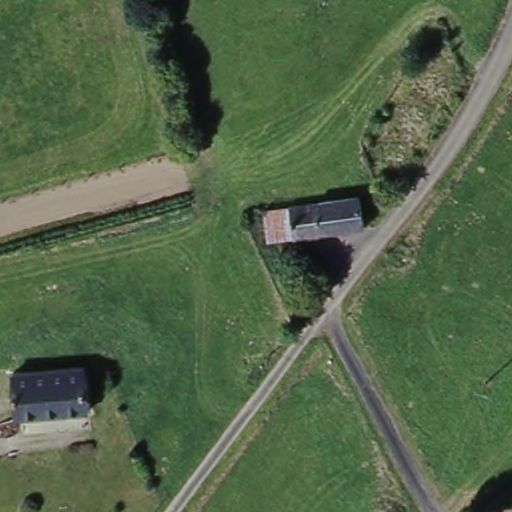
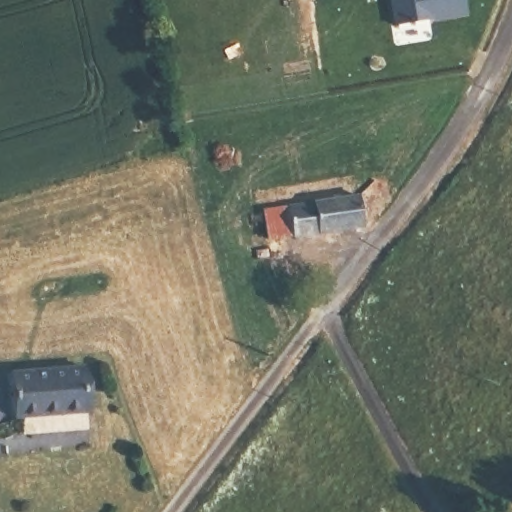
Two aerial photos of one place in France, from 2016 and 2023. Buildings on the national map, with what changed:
new [(464,19),(396,25),(393,0),(462,0),(464,19)]
unchanged [(274,268),(258,240),(256,217),(269,211),(363,196),(366,228),(276,242),(286,262),(274,268)]
unchanged [(84,372),(88,417),(16,423),(12,377),(84,372)]

